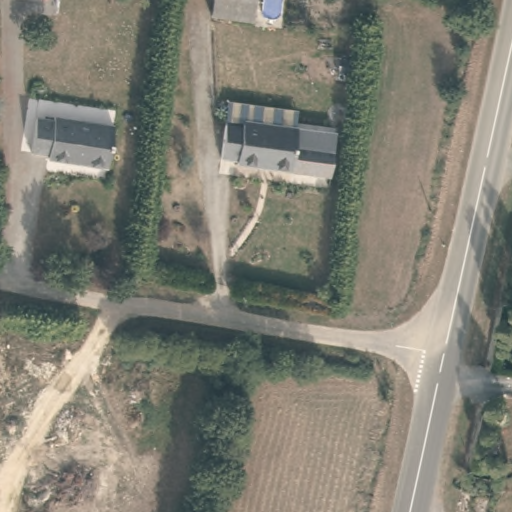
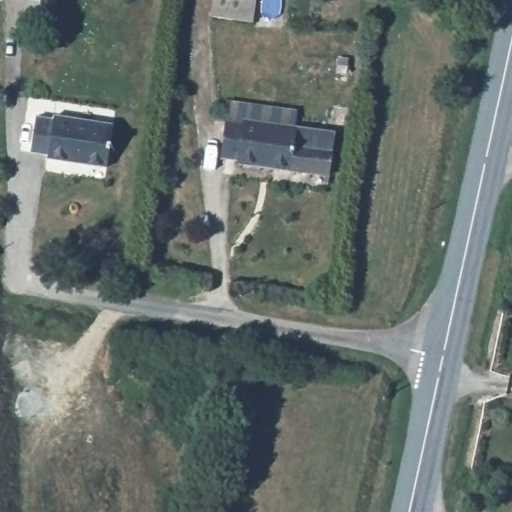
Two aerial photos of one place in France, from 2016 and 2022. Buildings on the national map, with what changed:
unchanged [(258,0),(256,16),(215,11),(216,0),(258,0)]
unchanged [(34,118),(50,120),(51,117),(108,126),(102,168),(45,160),(45,155),(29,152),(34,118)]
unchanged [(224,123),(239,126),(240,121),(291,129),(286,170),(236,163),(237,159),(220,158),(224,123)]
unchanged [(330,134),(325,175),(286,170),(291,129),(330,134)]

